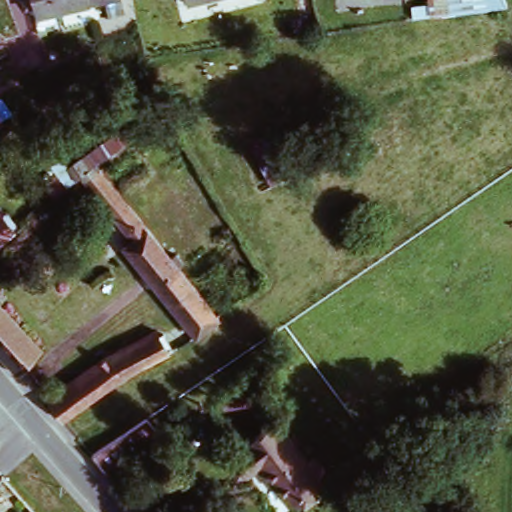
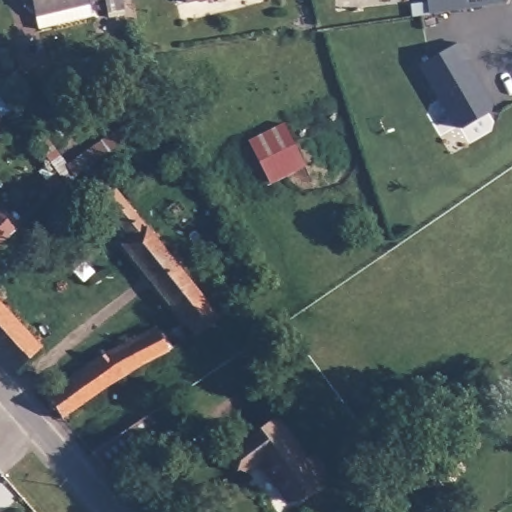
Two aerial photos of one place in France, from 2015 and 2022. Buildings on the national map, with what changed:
unchanged [(34,12),(31,0),(85,0),(34,12)]
unchanged [(427,0),(467,0),(448,3),(428,7),(427,0)]
new [(461,41),(469,57),(467,58),(493,103),(491,110),(463,127),(456,125),(421,64),(461,41)]
new [(284,124),(308,168),(271,187),(249,141),(284,124)]
unchanged [(181,315),(85,189),(109,170),(204,298),(181,315)]
unchanged [(0,245),(0,229),(8,238),(0,245)]
unchanged [(16,370),(0,350),(0,304),(40,349),(16,370)]
unchanged [(168,351),(138,366),(62,413),(60,412),(50,399),(44,392),(103,358),(156,332),(168,351)]
unchanged [(99,444),(119,430),(149,411),(154,417),(163,430),(136,448),(113,464),(99,444)]
unchanged [(321,474),(291,497),(261,458),(249,467),(238,451),(281,419),(321,474)]

